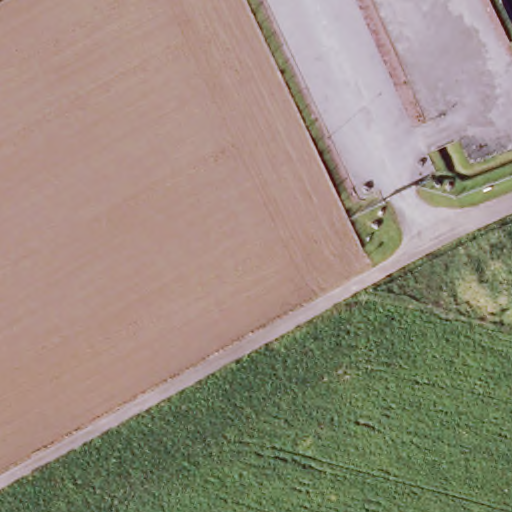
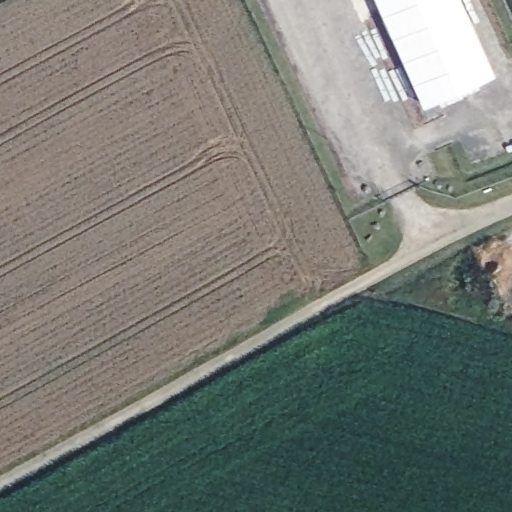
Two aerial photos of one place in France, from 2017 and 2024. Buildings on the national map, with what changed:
new [(496,72),(424,105),(378,4),(385,0),(462,0),(496,72)]

